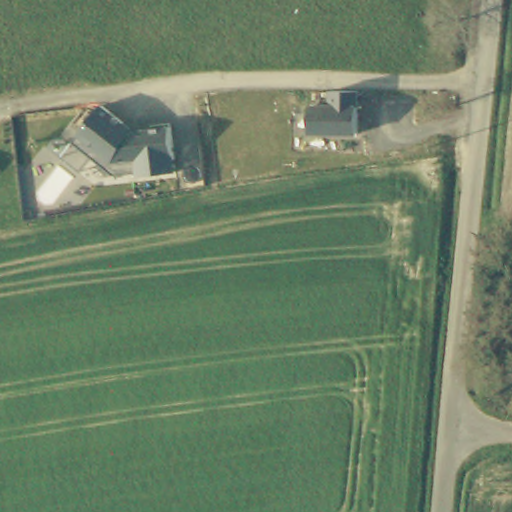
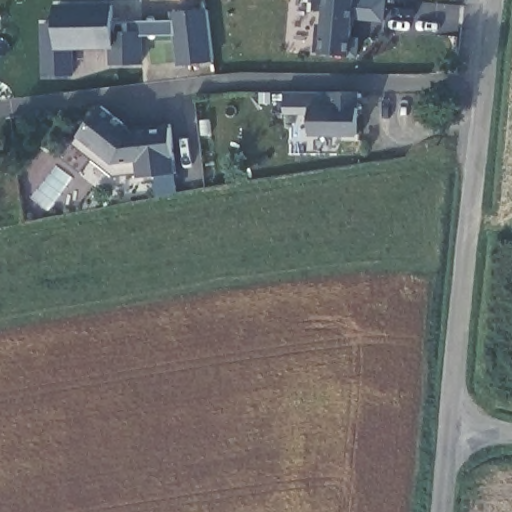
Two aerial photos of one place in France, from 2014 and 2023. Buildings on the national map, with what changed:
new [(385,23),(356,20),(355,36),(361,38),(360,58),(315,53),(317,34),(324,35),(325,11),(313,10),(315,0),(387,0),(385,23)]
new [(116,36),(142,37),(144,64),(110,65),(109,49),(73,50),(74,75),(43,76),(41,23),(60,22),(56,5),(115,4),(116,36)]
new [(215,61),(176,66),(170,13),(208,7),(215,61)]
unchanged [(353,96),(353,138),(305,138),(305,111),(326,111),(326,96),(353,96)]
unchanged [(115,178),(77,144),(104,106),(135,130),(171,125),(176,171),(115,178)]

